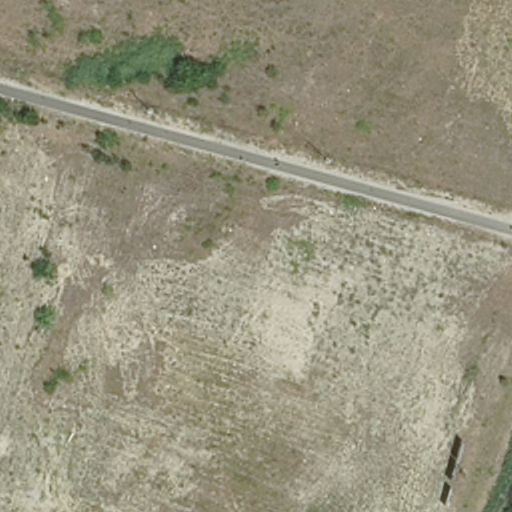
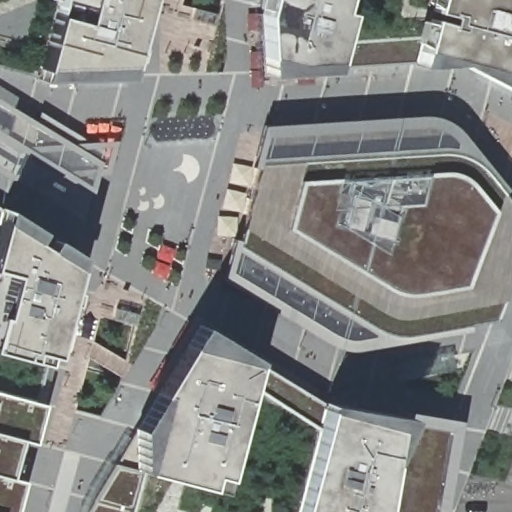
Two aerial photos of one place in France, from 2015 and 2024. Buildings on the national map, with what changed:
new [(38,79),(0,68),(0,0),(145,0),(124,71),(38,79)]
new [(267,75),(261,0),(512,0),(512,93),(444,58),(267,75)]
new [(33,120),(37,111),(86,142),(116,140),(109,172),(96,172),(92,192),(56,171),(40,200),(0,173),(0,100),(33,120)]
new [(340,348),(226,278),(266,125),(422,115),(440,117),(454,125),(512,200),(512,266),(491,317),(340,348)]
new [(72,268),(9,512),(0,512),(0,221),(72,268)]
new [(197,326),(256,362),(318,400),(459,426),(444,512),(80,512),(80,510),(197,326)]

